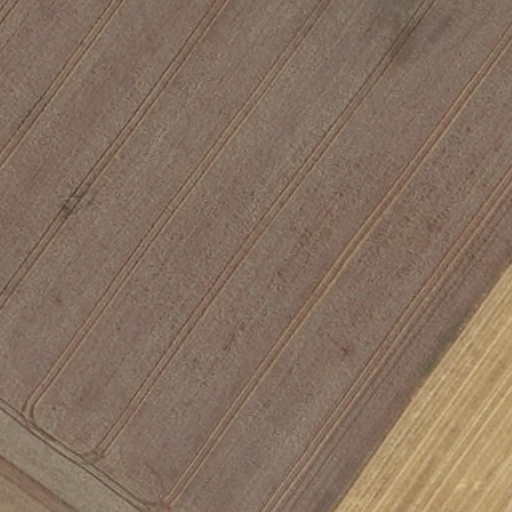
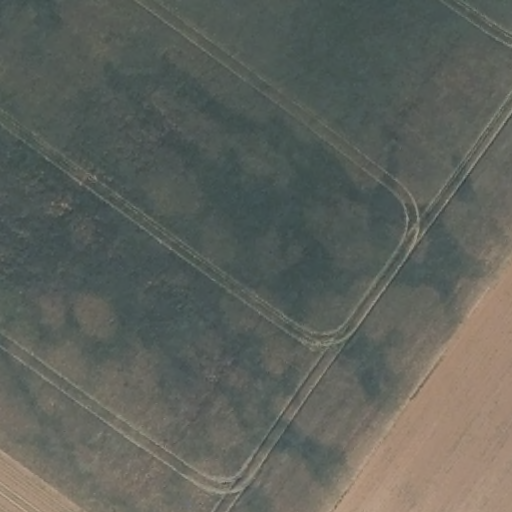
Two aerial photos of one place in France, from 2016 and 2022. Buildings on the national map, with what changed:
[]

